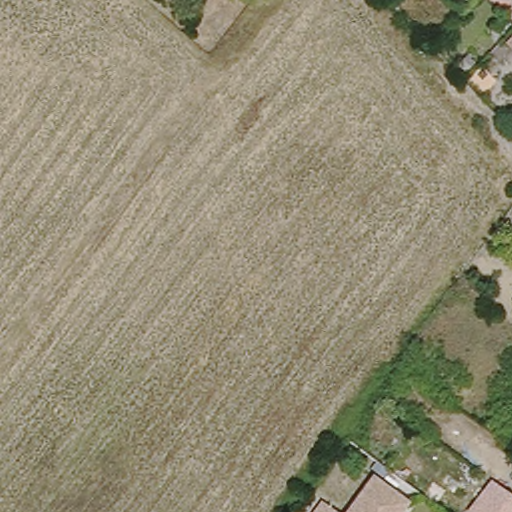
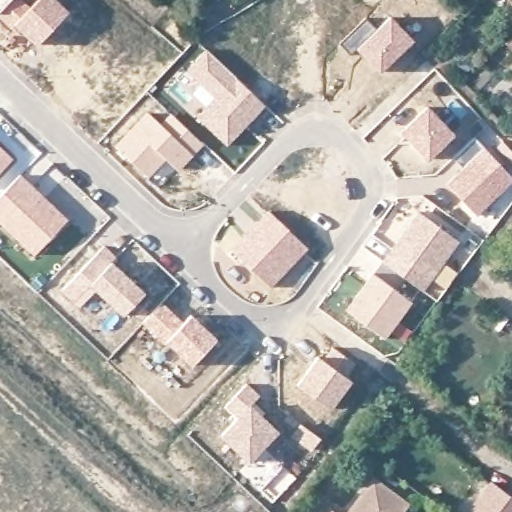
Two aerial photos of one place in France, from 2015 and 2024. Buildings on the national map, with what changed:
new [(31,4),(12,26),(0,15),(0,0),(25,0),(31,4)]
new [(31,4),(35,0),(57,0),(69,10),(36,45),(12,26),(31,4)]
unchanged [(480,15),(466,0),(498,0),(480,15)]
new [(414,40),(379,73),(355,48),(351,52),(341,43),(366,18),(376,28),(390,15),(414,40)]
new [(206,49),(265,105),(227,145),(195,116),(206,103),(211,97),(200,85),(186,70),(206,49)]
new [(428,105),(455,134),(427,160),(400,131),(428,105)]
new [(146,110),(161,122),(170,112),(204,143),(177,171),(165,161),(148,177),(114,145),(146,110)]
new [(456,158),(476,138),(512,175),(512,181),(477,216),(445,184),(463,165),(456,158)]
new [(14,161),(0,176),(0,148),(14,161)]
new [(54,164),(33,187),(22,176),(43,154),(54,164)]
new [(21,176),(70,221),(37,257),(0,222),(0,198),(21,176)]
new [(268,210),(308,248),(270,287),(229,252),(268,210)]
new [(419,213),(459,243),(424,291),(384,262),(419,213)]
new [(107,248),(102,253),(135,284),(114,306),(87,280),(70,297),(53,281),(95,237),(107,248)]
new [(413,302),(387,339),(348,311),(375,274),(413,302)]
new [(185,325),(193,316),(218,340),(194,366),(169,342),(167,344),(145,323),(163,304),(185,325)]
new [(262,396),(253,406),(280,431),(251,462),(223,435),(240,418),(227,405),(248,384),(262,396)]
unchanged [(407,512),(321,512),(333,495),(355,510),(378,478),(413,503),(407,512)]
unchanged [(498,493),(512,503),(512,512),(484,512),(496,494),(498,493)]

